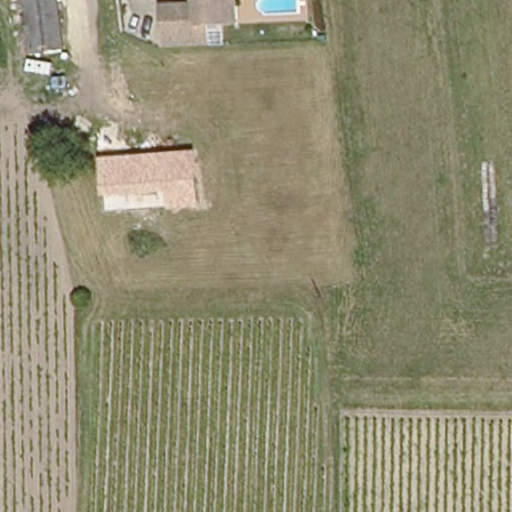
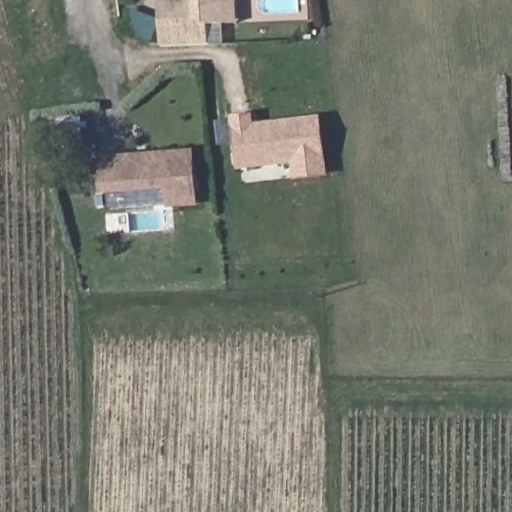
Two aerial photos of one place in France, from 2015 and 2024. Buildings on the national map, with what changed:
unchanged [(31,49),(24,0),(56,0),(62,46),(31,49)]
unchanged [(175,3),(196,2),(196,0),(238,0),(239,22),(225,23),(211,24),(212,44),(174,46),(164,47),(163,25),(162,4),(175,3)]
new [(294,181),(292,165),(240,171),(235,131),(241,126),(240,115),(253,113),(255,124),(321,116),(328,177),(294,181)]
unchanged [(102,194),(98,157),(195,149),(199,206),(167,208),(167,190),(102,194)]

